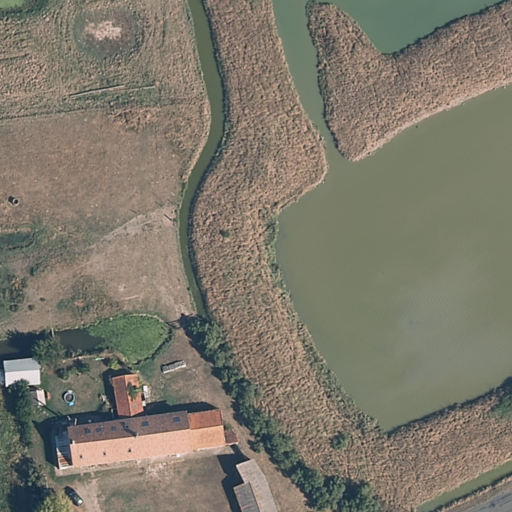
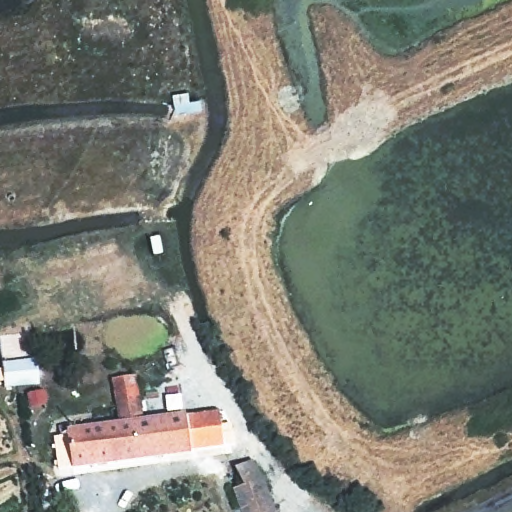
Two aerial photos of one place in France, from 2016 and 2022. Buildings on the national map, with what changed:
unchanged [(61,476),(59,448),(64,447),(62,431),(72,430),(73,436),(124,429),(118,378),(140,376),(146,425),(221,416),(224,434),(237,432),(239,449),(229,451),(157,461),(61,476)]
unchanged [(255,488),(274,481),(286,512),(251,512),(262,508),(255,488)]

